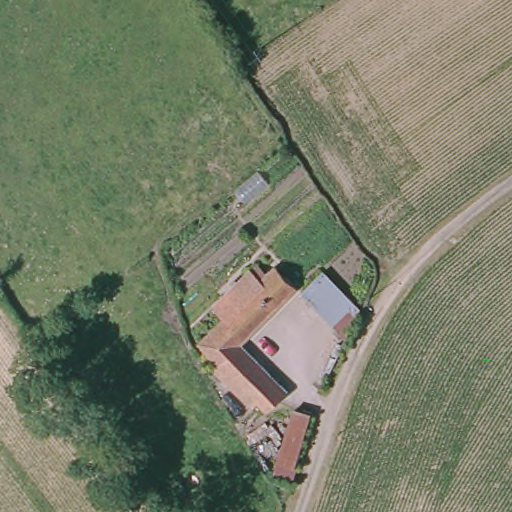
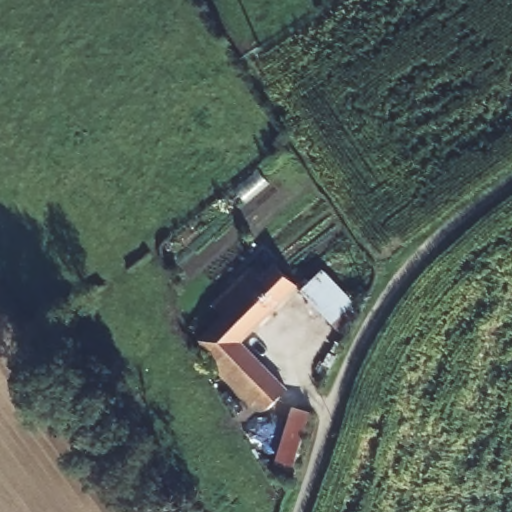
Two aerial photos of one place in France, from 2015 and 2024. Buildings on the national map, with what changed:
unchanged [(233,346),(291,393),(275,412),(267,406),(262,411),(259,415),(212,376),(209,373),(214,367),(193,347),(193,345),(209,330),(237,303),(227,292),(226,290),(233,284),(263,256),(274,268),(279,263),(280,262),(289,254),(308,274),(290,291),(233,346)]
unchanged [(303,291),(323,268),(356,304),(339,328),(303,291)]
unchanged [(296,405),(314,414),(292,480),(273,472),(296,405)]

